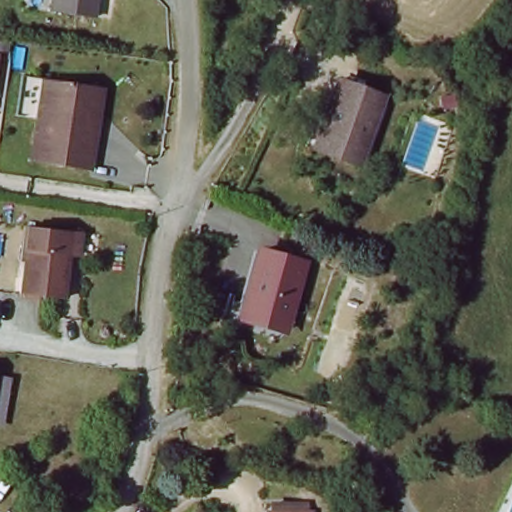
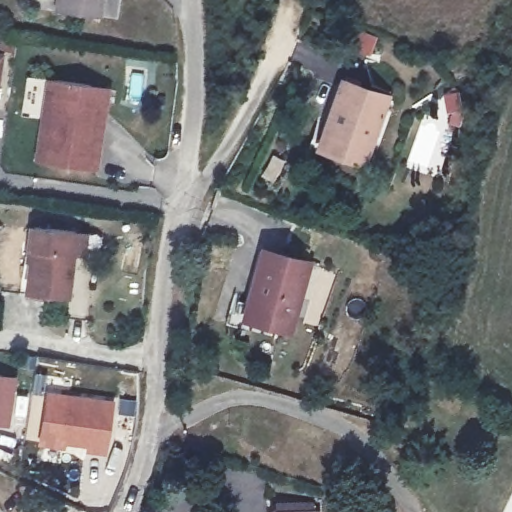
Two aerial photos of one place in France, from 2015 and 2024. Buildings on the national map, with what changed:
unchanged [(101,16),(58,8),(59,0),(103,0),(101,16)]
unchanged [(6,53),(0,96),(0,52),(6,53)]
unchanged [(35,166),(42,125),(20,121),(27,80),(47,83),(88,90),(110,94),(102,138),(96,177),(35,166)]
unchanged [(324,147),(329,133),(347,80),(390,96),(372,147),(367,162),(324,147)]
unchanged [(18,297),(25,234),(69,238),(78,239),(74,260),(66,259),(61,302),(18,297)]
unchanged [(247,317),(251,301),(263,250),(308,261),(295,313),(292,327),(247,317)]
unchanged [(0,392),(0,377),(2,377),(0,392)]
new [(117,400),(109,453),(89,450),(91,444),(70,441),(69,448),(43,443),(52,388),(117,400)]
unchanged [(269,512),(270,509),(315,511),(314,512),(269,512)]

